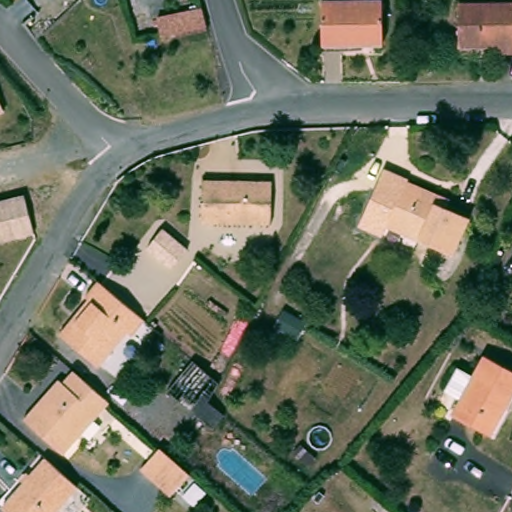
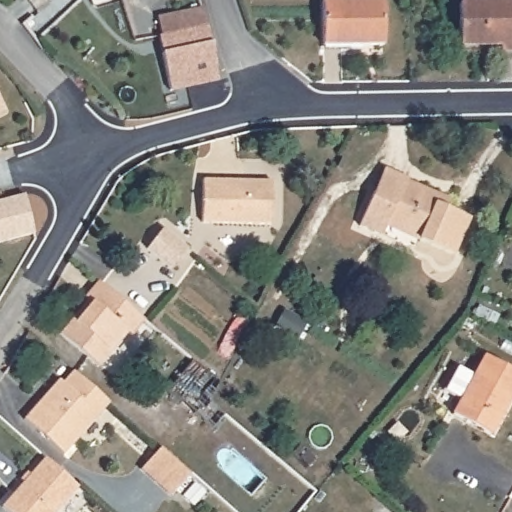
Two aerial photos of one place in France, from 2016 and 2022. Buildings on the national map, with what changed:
unchanged [(325,44),(325,0),(385,0),(385,44),(325,44)]
unchanged [(498,43),(458,44),(459,6),(512,5),(512,52),(498,52),(498,43)]
demolished [(202,10),(206,27),(175,34),(170,35),(160,37),(156,19),(202,10)]
new [(206,27),(175,34),(170,35),(160,37),(156,19),(202,10),(206,27)]
new [(169,91),(160,37),(206,27),(218,82),(169,91)]
unchanged [(9,107),(0,111),(0,88),(9,107)]
unchanged [(270,226),(203,222),(203,180),(271,185),(270,226)]
unchanged [(390,218),(405,182),(444,197),(471,209),(468,217),(450,255),(416,240),(386,227),(390,218)]
unchanged [(28,192),(40,233),(0,242),(0,200),(28,192)]
unchanged [(174,266),(147,244),(162,226),(189,247),(174,266)]
unchanged [(124,331),(108,350),(113,353),(99,369),(59,336),(71,321),(74,323),(90,303),(84,298),(98,282),(145,320),(131,337),(124,331)]
unchanged [(512,395),(493,431),(452,410),(462,392),(447,383),(460,362),(475,371),(486,353),(512,368),(512,395)]
unchanged [(192,360),(219,382),(215,390),(210,406),(223,417),(214,427),(169,387),(192,360)]
unchanged [(63,380),(67,383),(78,371),(111,402),(66,453),(28,420),(63,380)]
unchanged [(192,473),(173,495),(143,468),(162,447),(192,473)]
unchanged [(46,457),(80,486),(57,512),(9,512),(3,506),(46,457)]

